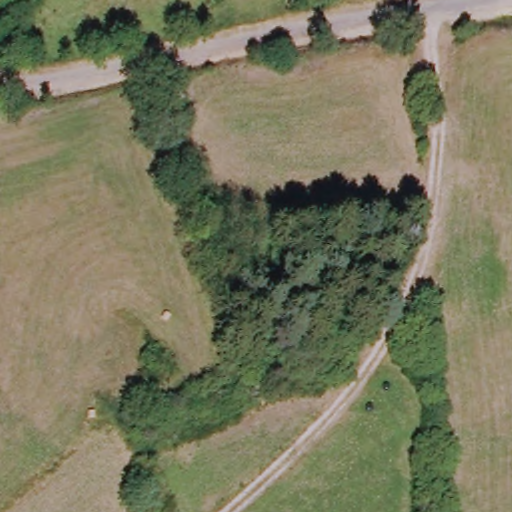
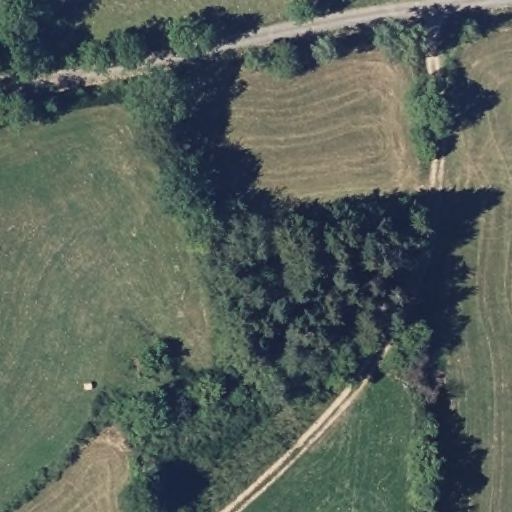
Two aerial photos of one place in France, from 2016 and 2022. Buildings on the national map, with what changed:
[]

